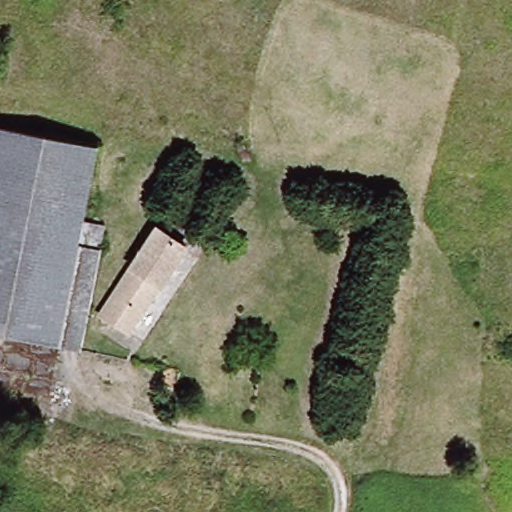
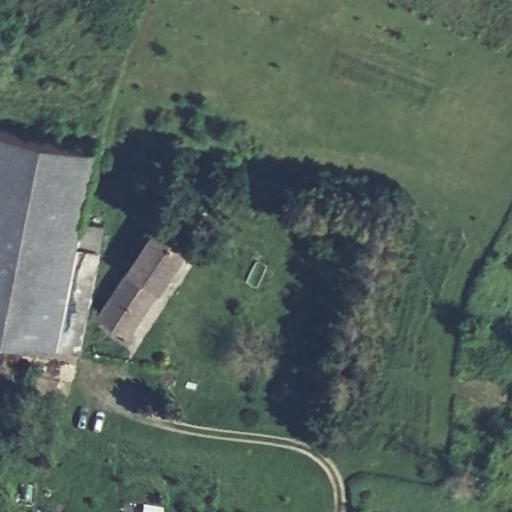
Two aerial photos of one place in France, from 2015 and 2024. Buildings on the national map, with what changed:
unchanged [(0,124),(98,143),(93,171),(63,344),(0,332),(0,124)]
unchanged [(114,175),(81,347),(63,344),(93,171),(114,175)]
unchanged [(104,317),(153,225),(183,241),(135,332),(104,317)]

